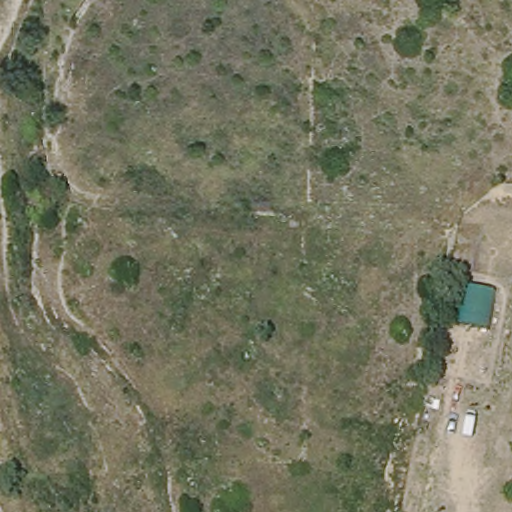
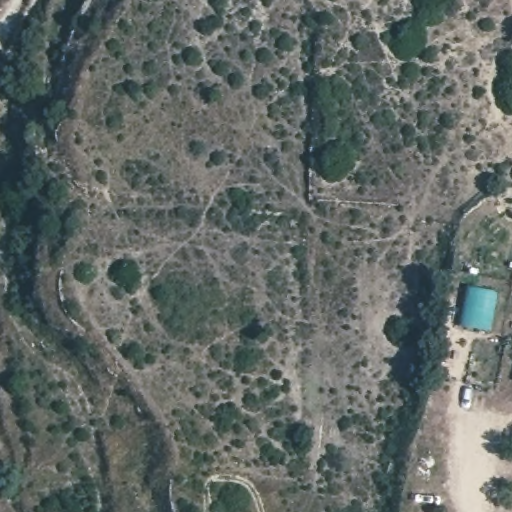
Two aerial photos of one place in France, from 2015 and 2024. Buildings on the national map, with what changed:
unchanged [(462,287),(495,295),(488,332),(454,326),(462,287)]

